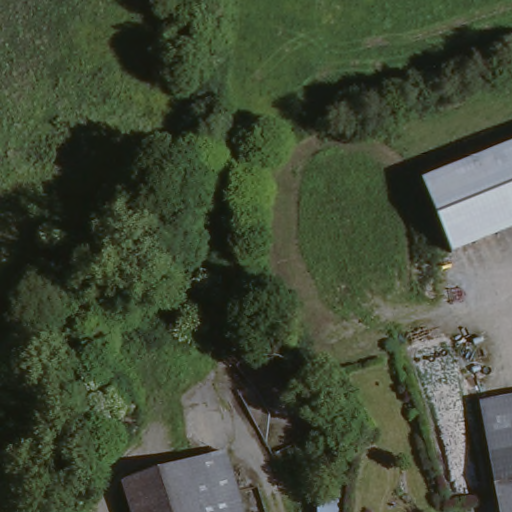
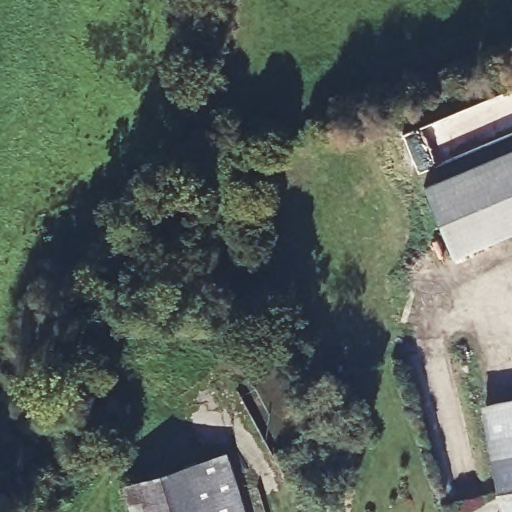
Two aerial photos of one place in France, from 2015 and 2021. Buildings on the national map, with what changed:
unchanged [(422,186),(512,149),(512,233),(452,257),(422,186)]
unchanged [(512,397),(512,512),(505,512),(486,402),(512,397)]
unchanged [(247,512),(154,512),(147,480),(144,468),(230,447),(234,460),(247,512)]
unchanged [(320,511),(342,508),(343,512),(320,512),(320,511)]

